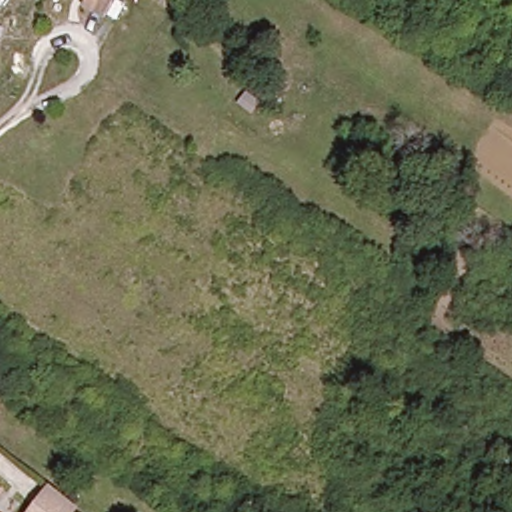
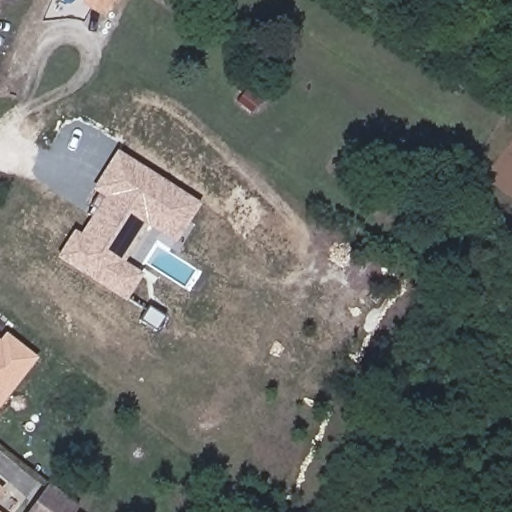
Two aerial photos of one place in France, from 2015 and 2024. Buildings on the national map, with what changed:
unchanged [(84,0),(111,0),(105,12),(90,4),(84,1),(84,0)]
new [(176,244),(146,226),(125,262),(144,274),(126,303),(55,258),(74,229),(80,234),(104,199),(91,190),(116,150),(200,204),(176,244)]
new [(0,337),(4,332),(38,358),(0,406),(0,337)]
unchanged [(80,507),(77,512),(28,512),(49,485),(80,507)]

